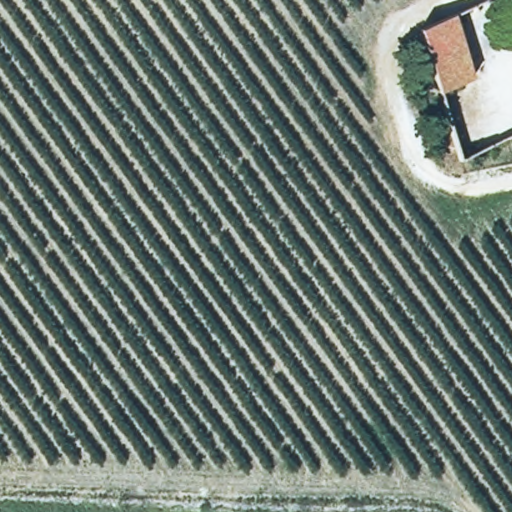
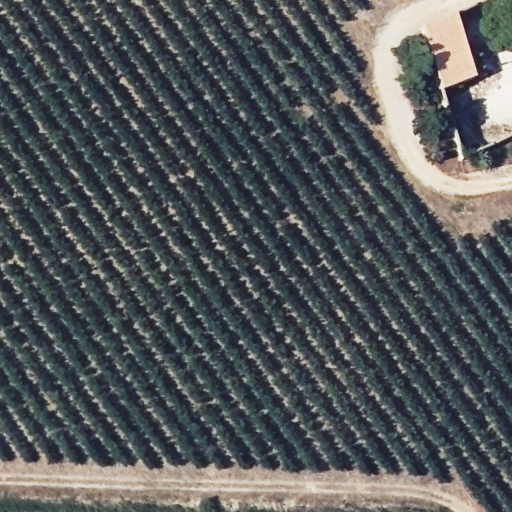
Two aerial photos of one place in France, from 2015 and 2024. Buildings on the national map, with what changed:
unchanged [(422,28),(450,16),(475,74),(446,90),(422,28)]

